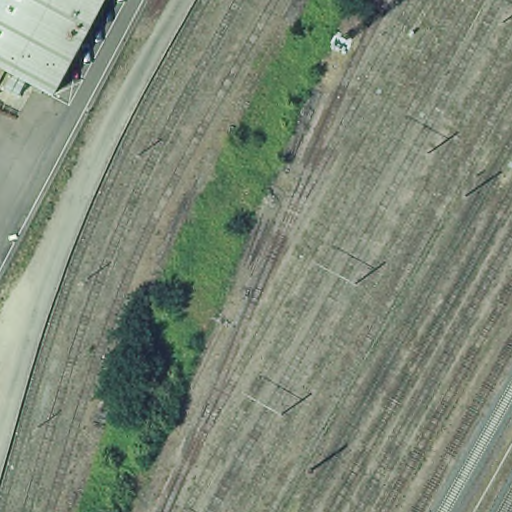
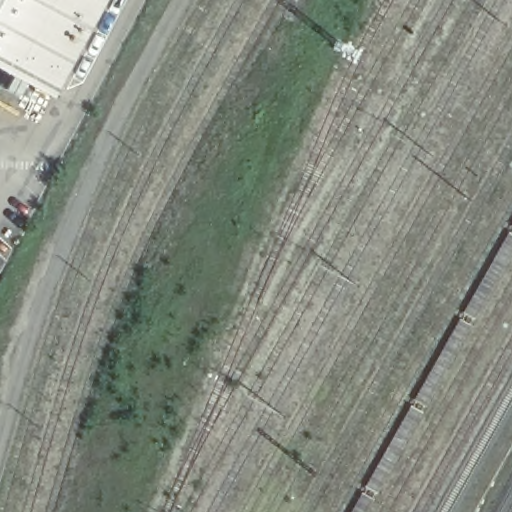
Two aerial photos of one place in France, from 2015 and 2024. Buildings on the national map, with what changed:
unchanged [(0,0),(100,0),(45,104),(0,80),(0,0)]

